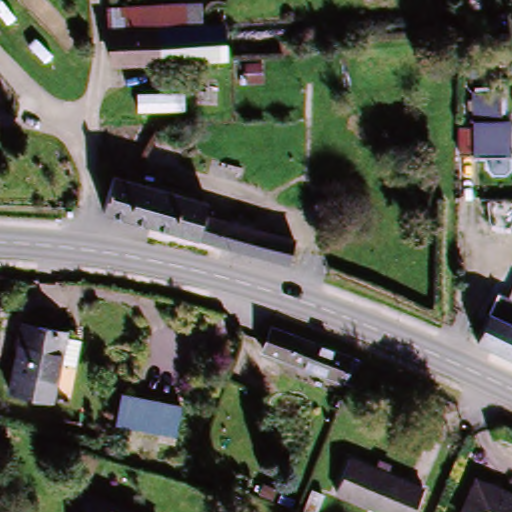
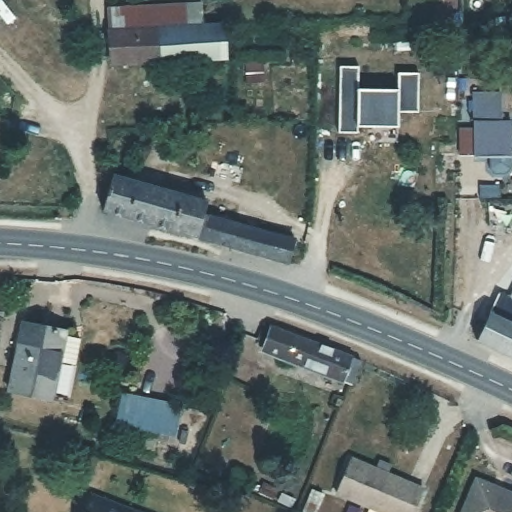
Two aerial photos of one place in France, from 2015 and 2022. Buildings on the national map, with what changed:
demolished [(227,3),(227,0),(284,0),(284,5),(227,3)]
unchanged [(189,27),(108,32),(107,10),(196,4),(198,27),(189,27)]
unchanged [(220,60),(110,66),(108,32),(189,27),(198,27),(218,26),(218,31),(220,60)]
new [(404,130),(363,130),(362,136),(342,135),(342,67),(361,67),(360,89),(399,90),(399,72),(420,72),(419,111),(404,111),(404,130)]
unchanged [(217,109),(186,109),(186,122),(137,123),(134,93),(187,92),(187,80),(218,81),(217,109)]
unchanged [(478,94),(501,93),(502,123),(512,123),(512,158),(466,159),(465,132),(479,131),(478,94)]
unchanged [(204,203),(201,214),(210,217),(231,222),(291,238),(286,259),(285,264),(247,254),(195,241),(188,239),(100,215),(101,211),(109,179),(204,203)]
unchanged [(491,318),(500,299),(501,296),(512,301),(512,359),(478,343),(491,318)]
unchanged [(67,332),(66,340),(85,343),(79,368),(61,364),(53,401),(13,393),(26,324),(67,332)]
unchanged [(348,387),(258,353),(267,326),(358,362),(348,387)]
unchanged [(180,412),(174,436),(113,418),(118,394),(138,401),(180,412)]
unchanged [(299,473),(293,488),(267,478),(272,463),(299,473)]
unchanged [(413,512),(371,512),(338,500),(350,463),(422,488),(413,512)]
unchanged [(512,512),(464,512),(474,483),(512,497),(512,512)]
unchanged [(88,512),(92,497),(139,512),(88,512)]

